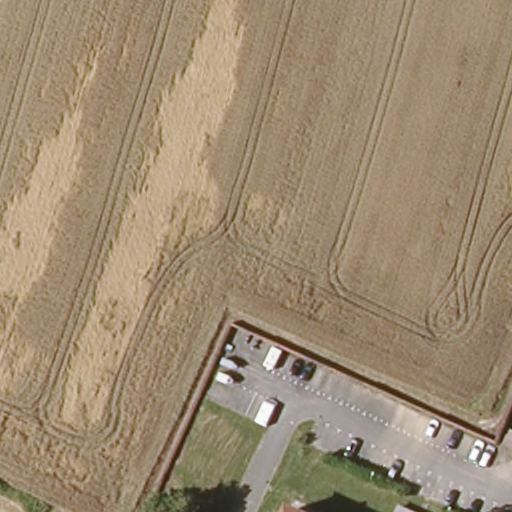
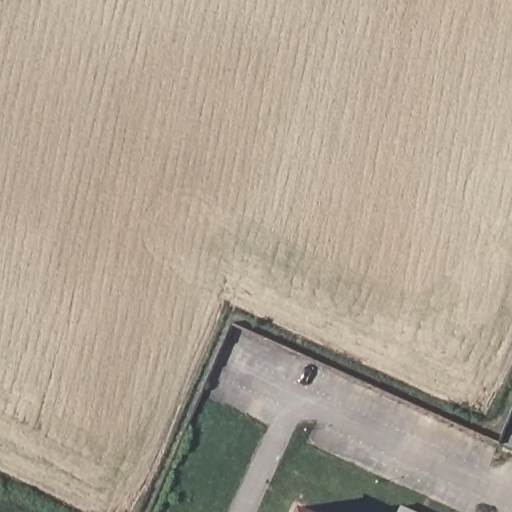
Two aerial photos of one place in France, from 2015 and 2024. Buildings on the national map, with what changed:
unchanged [(299,503),(318,512),(295,512),(299,503)]

